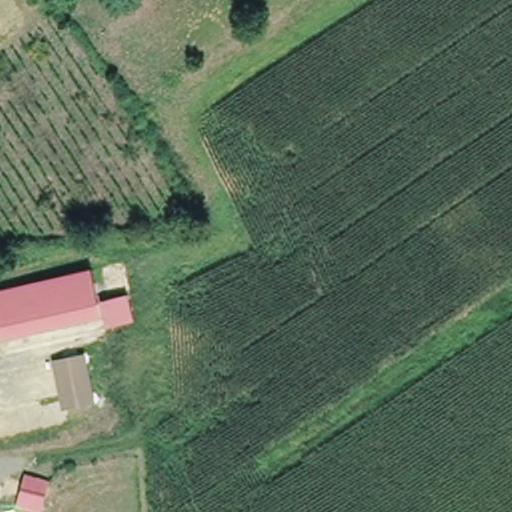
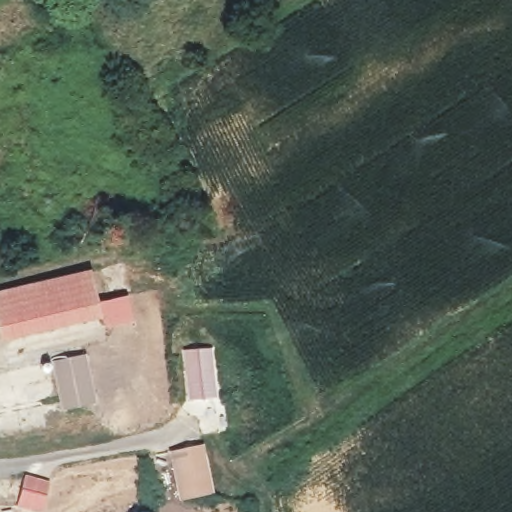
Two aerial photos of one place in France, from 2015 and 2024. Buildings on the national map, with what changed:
unchanged [(0,331),(0,285),(89,265),(99,298),(126,291),(134,319),(102,326),(99,317),(1,337),(0,331)]
new [(217,397),(189,400),(184,350),(212,348),(217,397)]
unchanged [(96,402),(64,410),(53,362),(86,355),(96,402)]
new [(213,492),(180,500),(171,451),(203,445),(213,492)]

